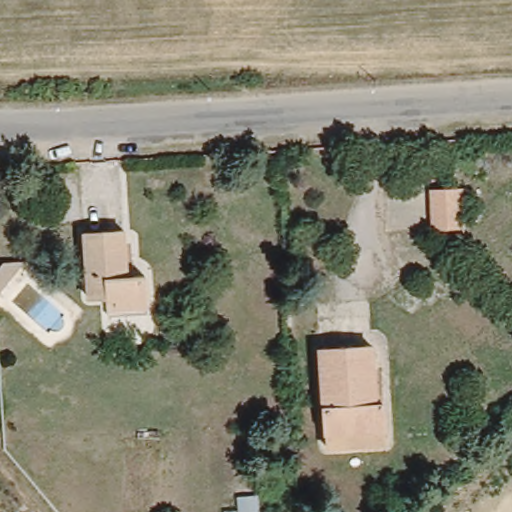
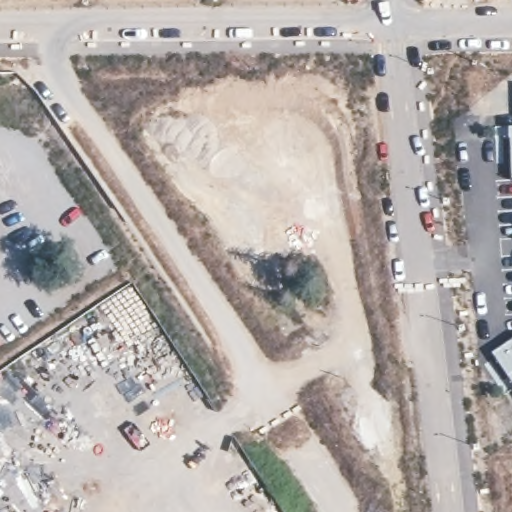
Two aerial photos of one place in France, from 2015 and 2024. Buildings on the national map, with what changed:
new [(512,138),(509,138),(509,127),(512,127),(512,159),(512,138)]
demolished [(461,188),(464,228),(434,231),(431,189),(454,188),(461,188)]
demolished [(134,269),(151,269),(153,301),(114,303),(114,292),(95,293),(90,228),(131,225),(134,269)]
new [(493,353),(512,340),(512,382),(493,353)]
demolished [(383,401),(389,401),(392,444),(332,448),(326,348),(379,345),(383,401)]

